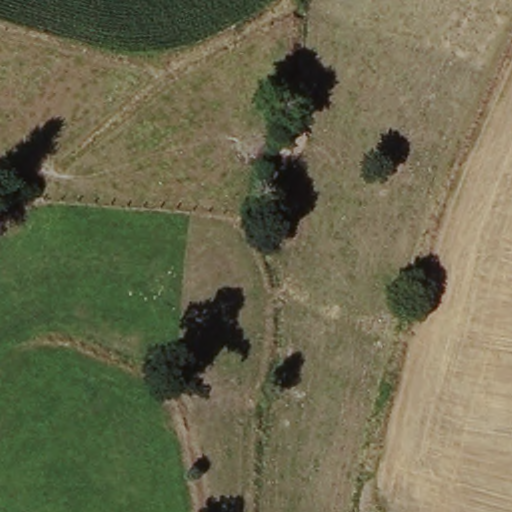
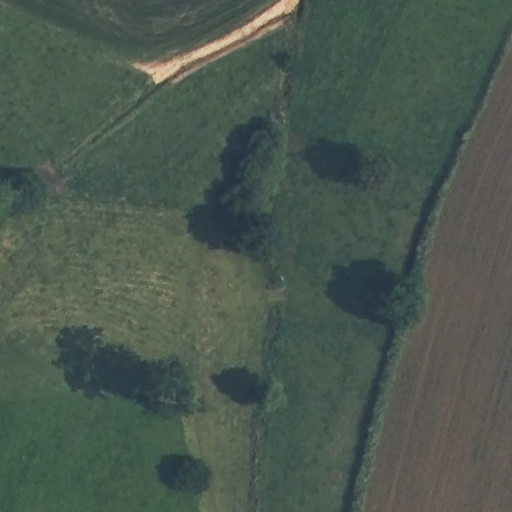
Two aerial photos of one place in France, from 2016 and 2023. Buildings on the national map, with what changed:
[]

